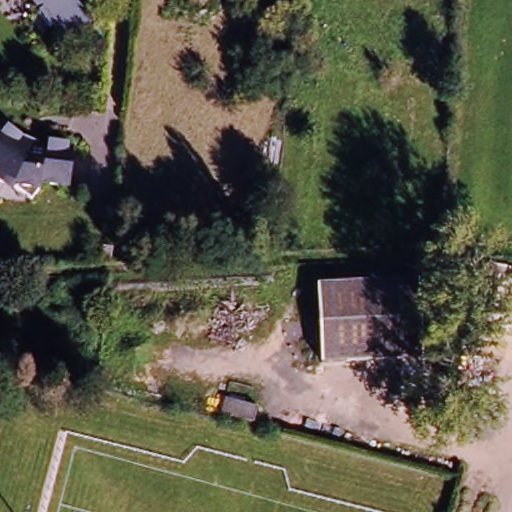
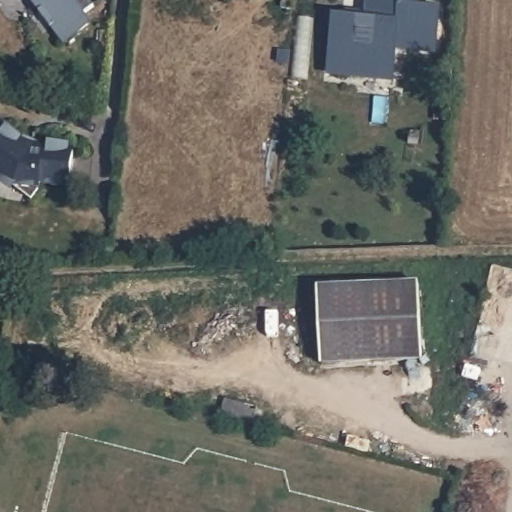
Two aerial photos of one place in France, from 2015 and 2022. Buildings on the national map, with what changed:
unchanged [(82,33),(60,49),(48,33),(45,36),(34,19),(37,17),(27,1),(15,0),(78,0),(89,16),(77,25),(82,33)]
new [(335,20),(368,24),(371,0),(401,0),(400,10),(440,14),(435,56),(396,51),(392,83),(328,76),(335,20)]
unchanged [(20,141),(19,146),(27,147),(30,142),(45,144),(45,142),(62,144),(62,146),(68,147),(63,186),(35,183),(35,190),(26,199),(8,185),(7,185),(5,184),(3,184),(0,182),(0,123),(20,139),(20,141)]
unchanged [(423,281),(427,359),(325,364),(320,287),(423,281)]
unchanged [(305,421),(301,437),(270,429),(275,413),(305,421)]

